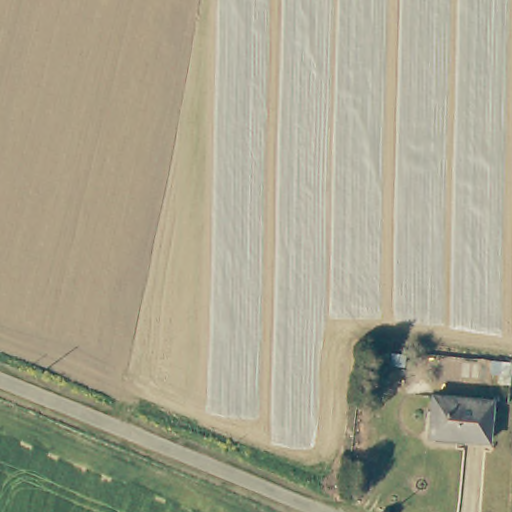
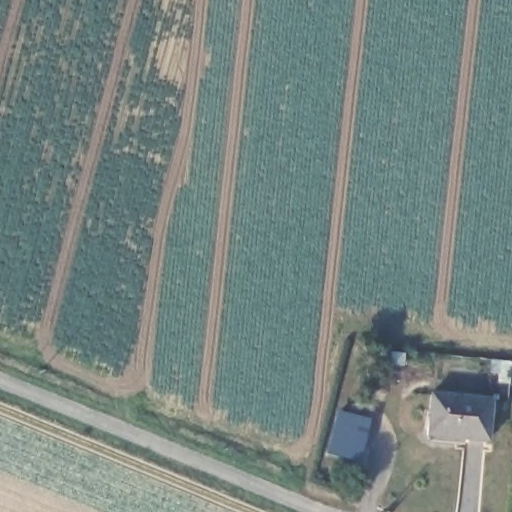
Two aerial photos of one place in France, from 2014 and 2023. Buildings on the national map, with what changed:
unchanged [(489,443),(425,434),(430,395),(493,404),(489,443)]
new [(358,463),(326,454),(336,410),(370,419),(358,463)]

